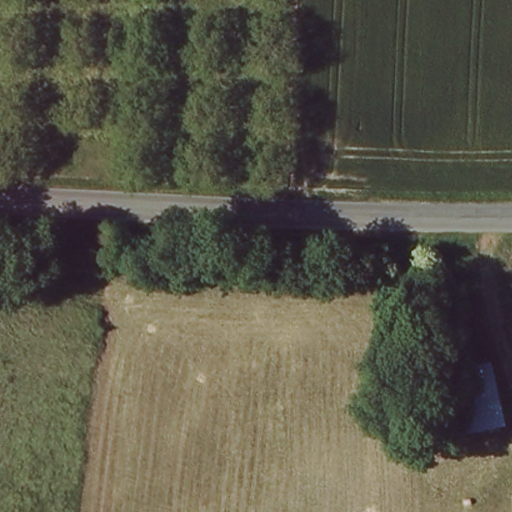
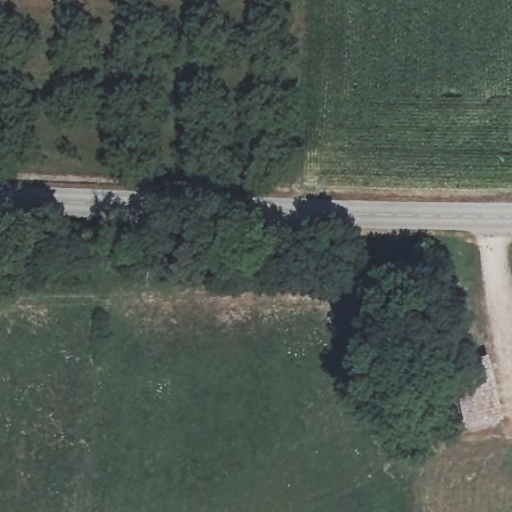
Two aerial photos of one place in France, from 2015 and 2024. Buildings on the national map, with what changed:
unchanged [(461,443),(454,369),(498,369),(505,437),(461,443)]

